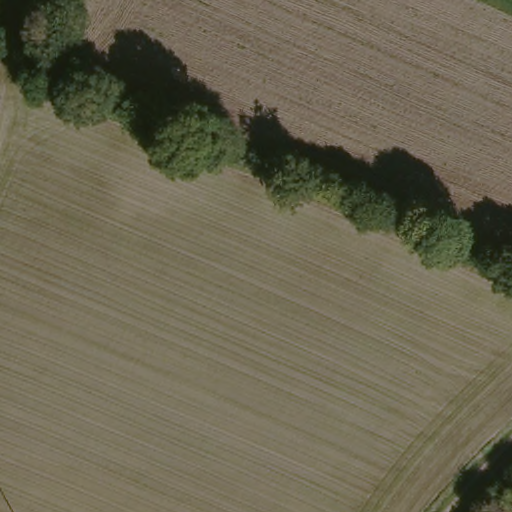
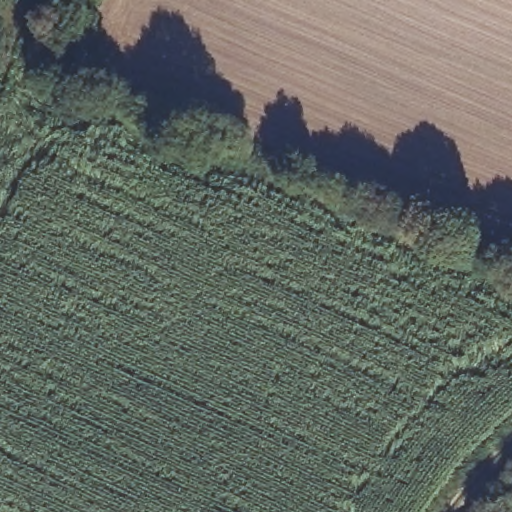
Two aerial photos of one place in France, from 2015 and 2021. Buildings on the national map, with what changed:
unchanged [(493,509),(500,512),(492,512),(493,509)]

